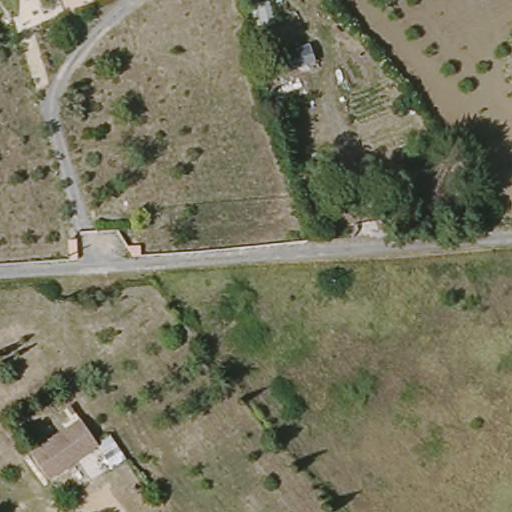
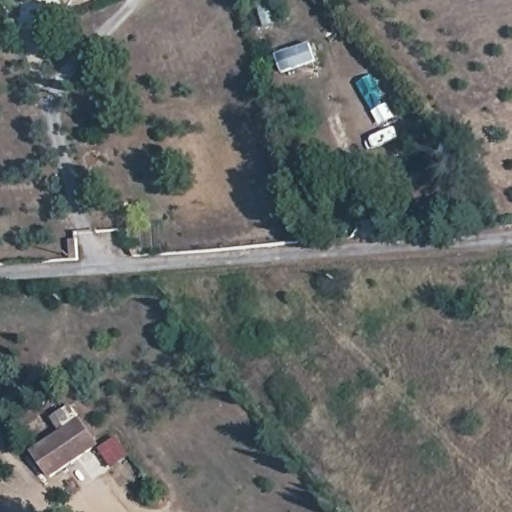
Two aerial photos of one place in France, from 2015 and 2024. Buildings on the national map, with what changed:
unchanged [(65,427),(56,415),(70,405),(97,444),(111,434),(127,458),(113,468),(99,447),(52,479),(31,450),(65,427)]

